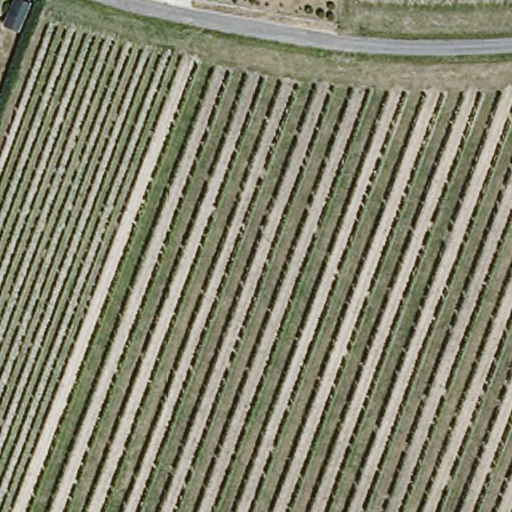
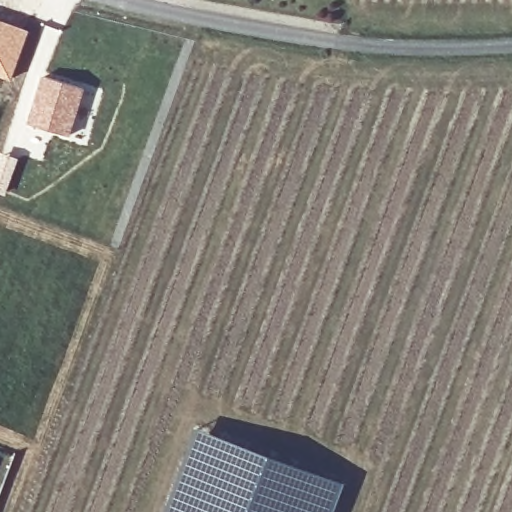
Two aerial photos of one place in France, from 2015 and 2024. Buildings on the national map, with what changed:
new [(41,74),(85,89),(70,136),(26,123),(41,74)]
new [(5,197),(0,195),(0,152),(19,158),(5,197)]
new [(183,467),(196,429),(220,434),(347,482),(335,512),(165,512),(183,467)]

